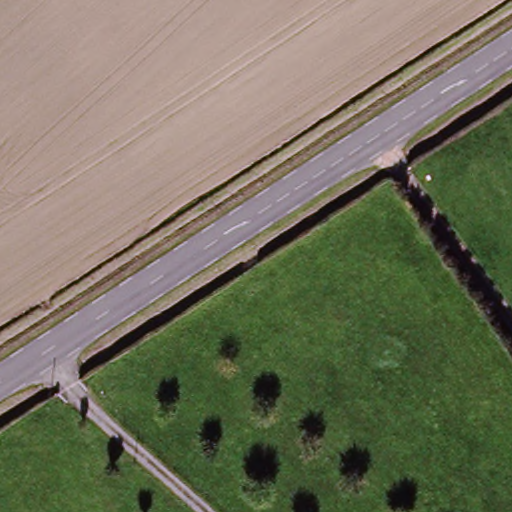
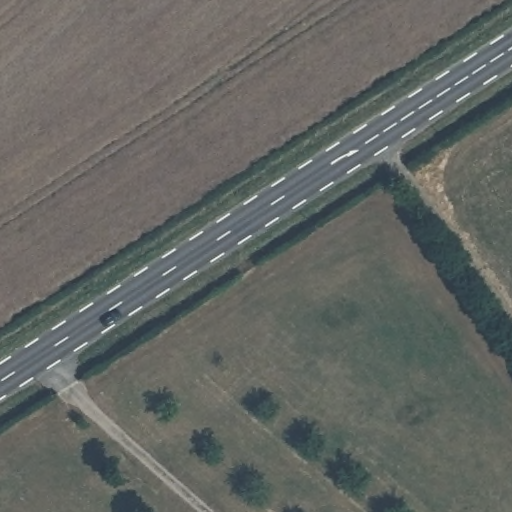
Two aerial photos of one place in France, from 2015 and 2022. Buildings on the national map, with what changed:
[]

